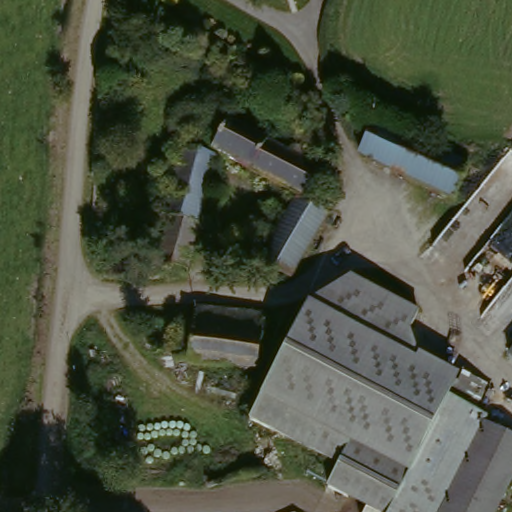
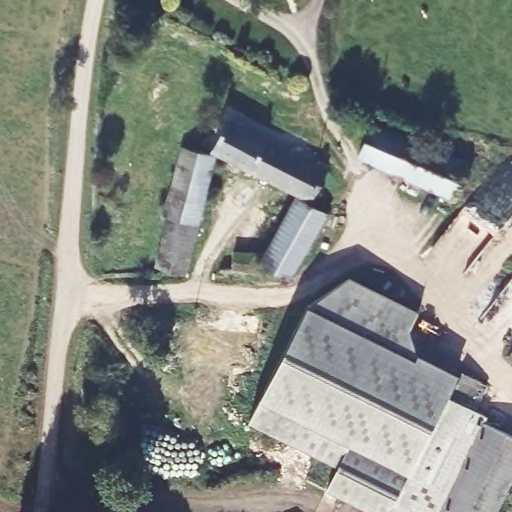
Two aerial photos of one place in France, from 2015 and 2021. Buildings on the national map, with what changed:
unchanged [(322,167),(309,196),(217,149),(232,120),(318,165),(322,167)]
unchanged [(380,127),(382,121),(442,148),(465,160),(449,192),(368,152),(371,147),(380,127)]
unchanged [(192,147),(222,156),(182,272),(152,262),(192,147)]
unchanged [(224,264),(265,260),(265,263),(295,204),(305,207),(309,196),(322,167),(336,174),(323,201),(332,206),(290,285),(267,273),(225,277),(224,264)]
unchanged [(388,426),(382,443),(354,429),(363,407),(273,369),(302,308),(339,277),(410,306),(402,324),(418,356),(388,426)]
unchanged [(184,358),(188,309),(260,316),(259,320),(254,365),(184,358)]
unchanged [(445,367),(388,426),(418,356),(445,367)]
unchanged [(249,421),(252,415),(252,414),(271,374),(273,369),(363,407),(354,429),(382,443),(388,426),(454,370),(490,388),(430,512),(362,512),(333,498),(340,466),(342,461),(290,439),(249,421)]
unchanged [(512,419),(512,485),(500,512),(446,512),(493,410),(512,419)]

